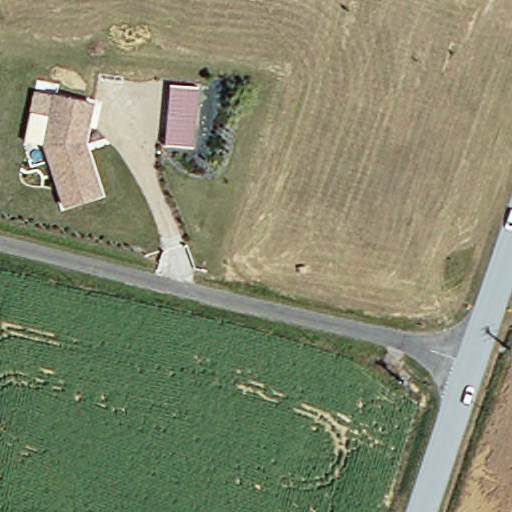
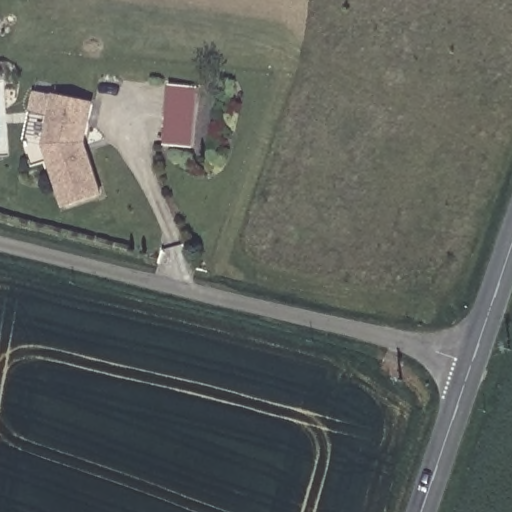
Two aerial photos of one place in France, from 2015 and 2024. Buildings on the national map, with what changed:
unchanged [(190,145),(163,143),(168,82),(194,86),(190,145)]
unchanged [(42,147),(21,145),(28,94),(48,97),(42,147)]
unchanged [(89,105),(81,142),(96,196),(59,208),(42,147),(48,97),(89,105)]

